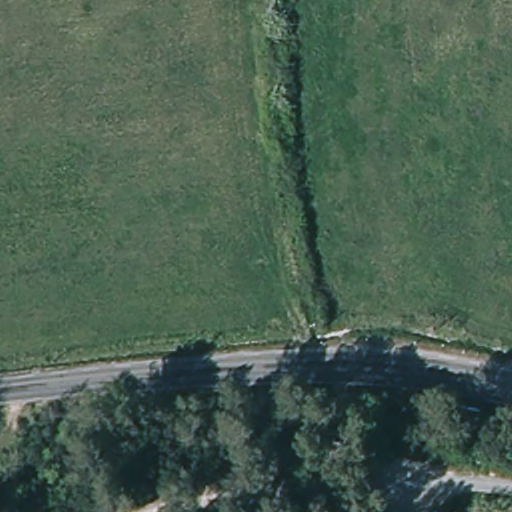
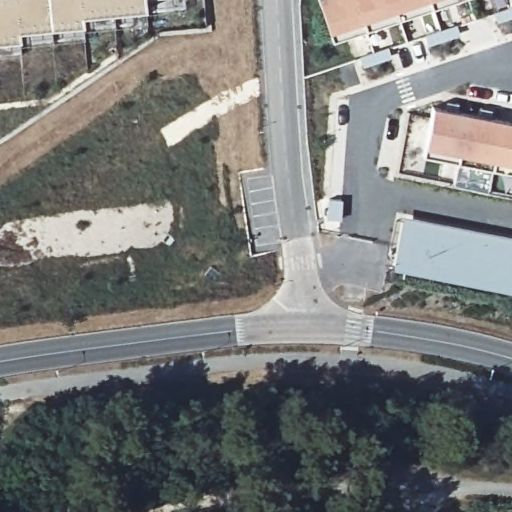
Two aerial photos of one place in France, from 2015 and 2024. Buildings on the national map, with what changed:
new [(146,9),(82,14),(82,23),(18,29),(19,38),(0,40),(0,0),(145,0),(146,9)]
new [(332,39),(319,0),(453,0),(332,39)]
new [(446,102),(459,104),(457,110),(475,114),(478,108),(492,111),(489,117),(512,121),(512,173),(423,155),(424,147),(432,106),(444,108),(446,102)]
new [(404,216),(512,237),(512,293),(393,269),(404,216)]

